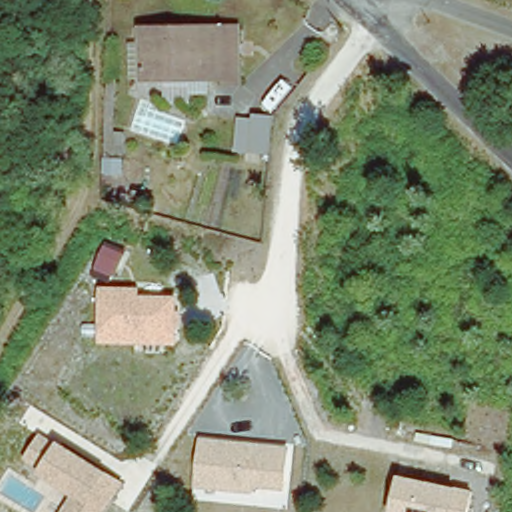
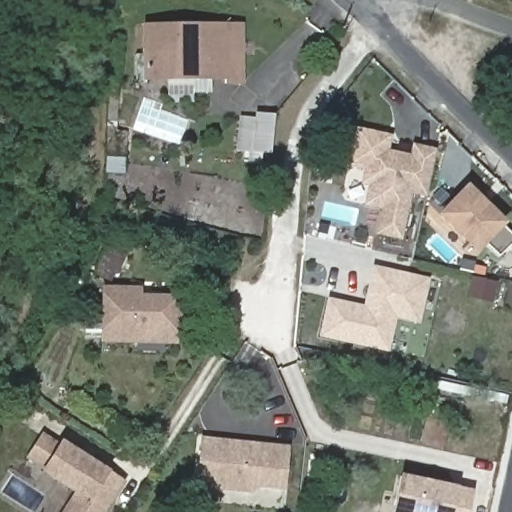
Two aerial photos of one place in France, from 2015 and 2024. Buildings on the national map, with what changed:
unchanged [(243,81),(226,83),(225,77),(145,79),(145,37),(144,25),(175,24),(241,22),(243,81)]
unchanged [(255,114),(274,115),(271,153),(253,152),(236,151),(239,117),(255,118),(255,114)]
new [(412,195),(402,240),(375,235),(381,210),(363,205),(367,187),(359,185),(363,170),(346,167),(356,126),(392,135),(389,150),(409,155),(412,144),(436,149),(426,197),(412,195)]
new [(476,255),(436,215),(466,184),(508,223),(476,255)]
new [(419,323),(395,318),(388,353),(318,338),(327,297),(364,305),(373,265),(430,278),(419,323)]
unchanged [(179,295),(179,345),(101,343),(101,286),(141,286),(143,295),(179,295)]
unchanged [(60,443),(61,440),(111,471),(126,483),(108,512),(64,512),(75,495),(41,472),(43,470),(26,460),(43,433),(60,443)]
unchanged [(196,489),(201,437),(290,445),(286,490),(261,487),(253,493),(196,489)]
unchanged [(473,491),(469,512),(392,512),(400,475),(457,487),(473,491)]

